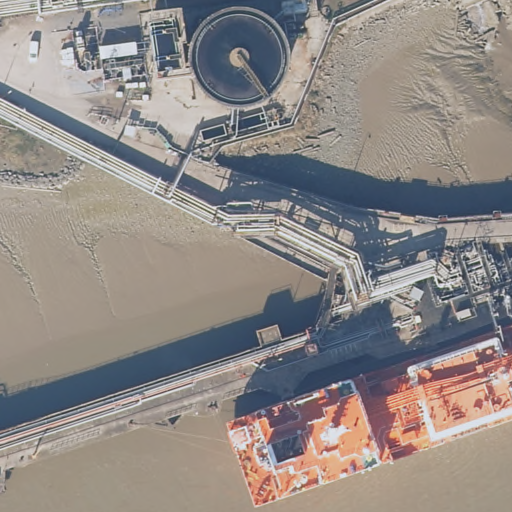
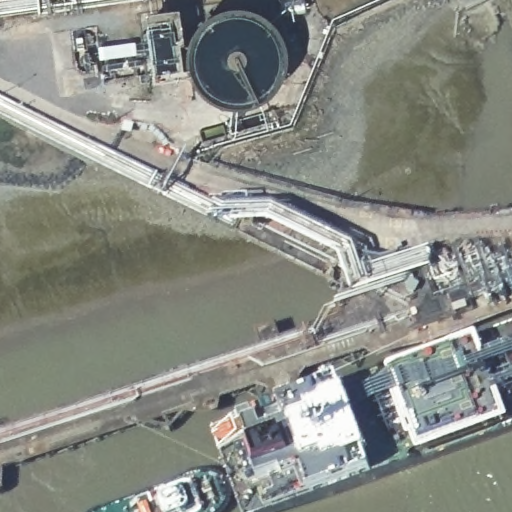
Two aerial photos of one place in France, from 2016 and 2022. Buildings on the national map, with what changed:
unchanged [(182,62),(159,66),(151,13),(174,10),(182,62)]

